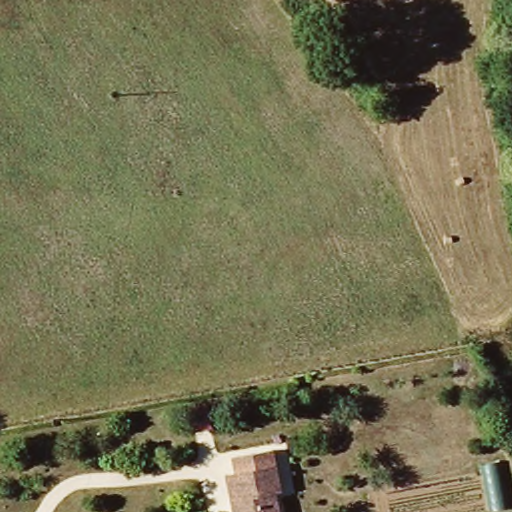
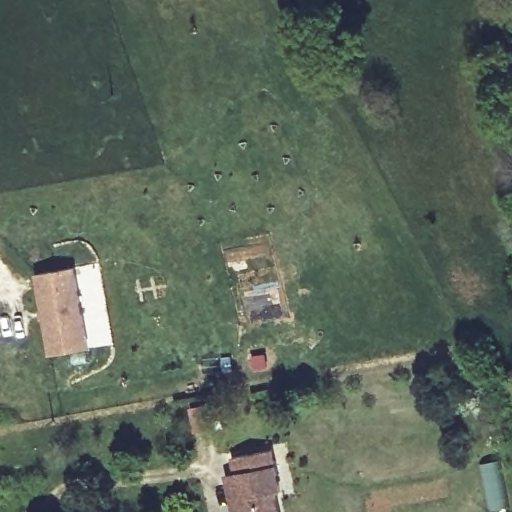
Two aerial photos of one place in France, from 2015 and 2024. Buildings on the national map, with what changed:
new [(77,267),(92,347),(50,355),(35,274),(77,267)]
unchanged [(269,444),(276,482),(272,484),(276,512),(231,512),(227,496),(222,474),(232,472),(230,452),(269,444)]

